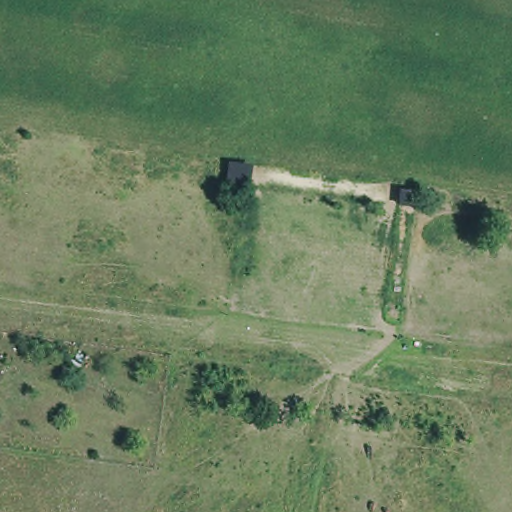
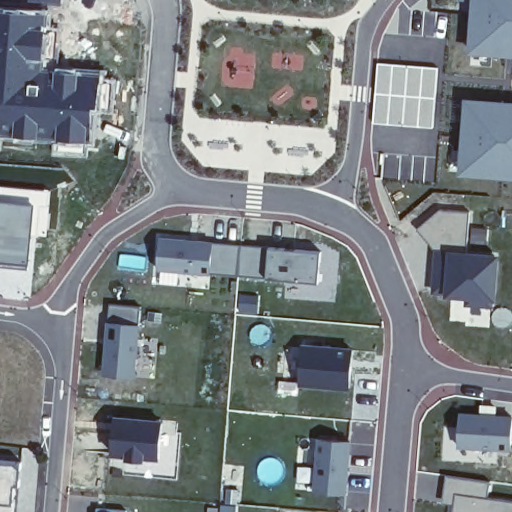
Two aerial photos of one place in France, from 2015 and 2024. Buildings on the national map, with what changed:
new [(36,0),(62,0),(62,3),(36,0)]
new [(469,51),(473,0),(512,0),(512,55),(469,51)]
new [(45,64),(104,69),(100,106),(96,106),(92,142),(55,141),(0,136),(0,5),(49,9),(45,64)]
new [(460,172),(465,104),(512,107),(512,176),(460,172)]
new [(47,237),(35,235),(37,202),(0,197),(0,184),(52,188),(47,237)]
new [(35,235),(32,271),(0,268),(0,197),(37,202),(35,235)]
new [(467,253),(495,257),(492,309),(462,308),(462,301),(441,299),(444,256),(432,254),(415,230),(437,211),(470,212),(467,253)]
new [(236,277),(155,273),(157,240),(238,246),(236,277)]
new [(238,246),(319,253),(315,286),(236,277),(238,246)]
new [(134,380),(100,376),(107,305),(139,307),(134,380)]
new [(347,388),(296,385),(299,348),(349,350),(347,388)]
new [(507,450),(455,449),(456,414),(510,416),(507,450)]
new [(156,461),(107,458),(110,420),(159,423),(156,461)]
new [(343,495),(312,492),(314,441),(349,444),(343,495)]
new [(0,462),(16,463),(12,512),(0,512),(0,462)]
new [(451,504),(442,503),(444,476),(487,482),(486,498),(512,502),(512,512),(450,512),(451,504)]
new [(72,499),(97,499),(97,510),(125,509),(125,512),(71,512),(72,499)]

